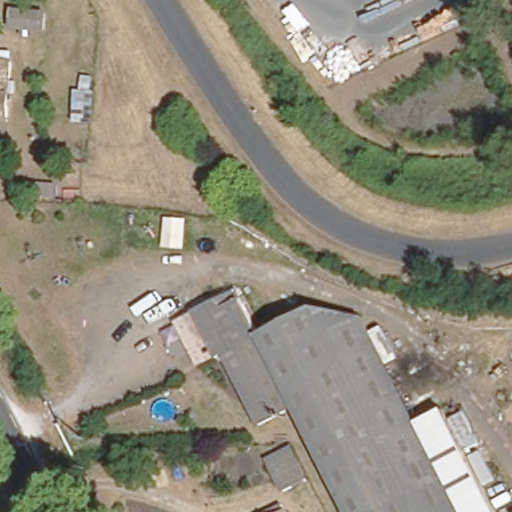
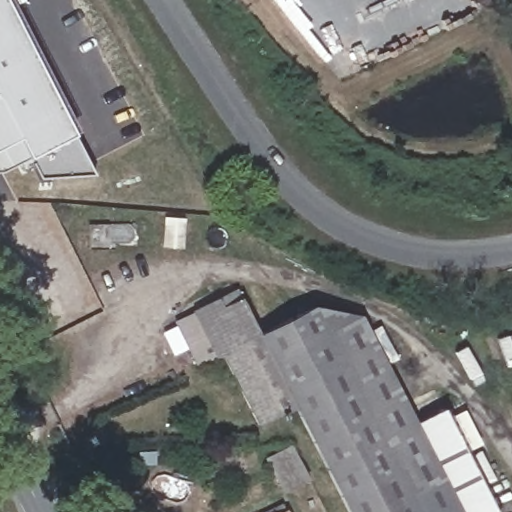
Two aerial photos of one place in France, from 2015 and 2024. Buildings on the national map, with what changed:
new [(1,172),(0,172),(0,0),(4,0),(72,135),(93,174),(39,178),(29,158),(1,172)]
demolished [(47,3),(46,21),(19,20),(20,1),(47,3)]
demolished [(2,117),(0,117),(0,62),(6,62),(2,117)]
unchanged [(256,418),(211,325),(202,329),(191,304),(219,291),(222,298),(237,291),(256,329),(313,302),(340,307),(358,310),(367,330),(412,419),(440,406),(491,512),(347,512),(293,400),(256,418)]
unchanged [(287,443),(302,475),(278,486),(263,454),(287,443)]
unchanged [(287,512),(284,512),(287,511),(287,512)]

